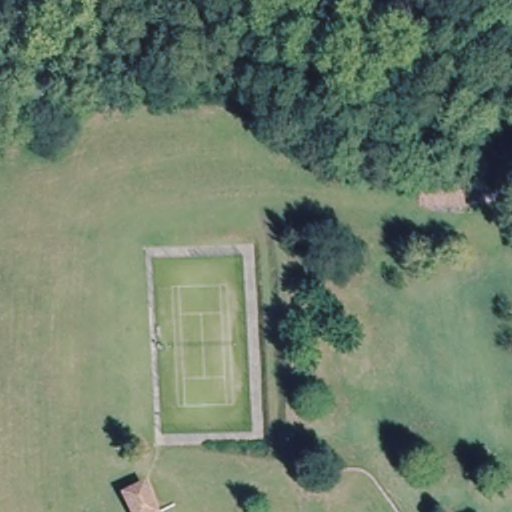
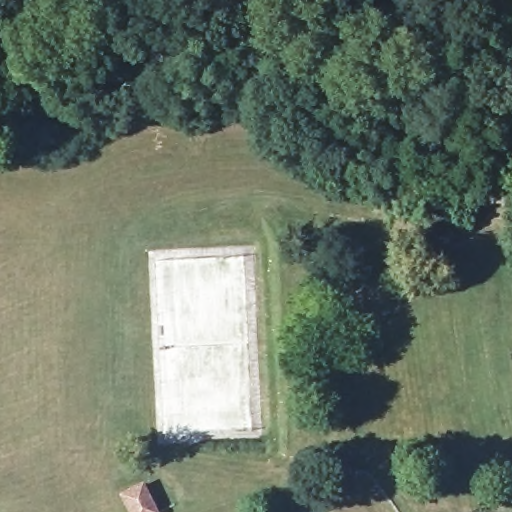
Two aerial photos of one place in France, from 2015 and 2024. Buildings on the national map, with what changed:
unchanged [(147,480),(163,512),(127,512),(119,494),(147,480)]

